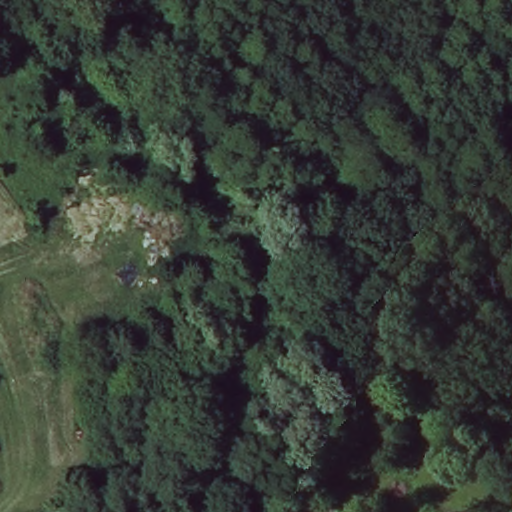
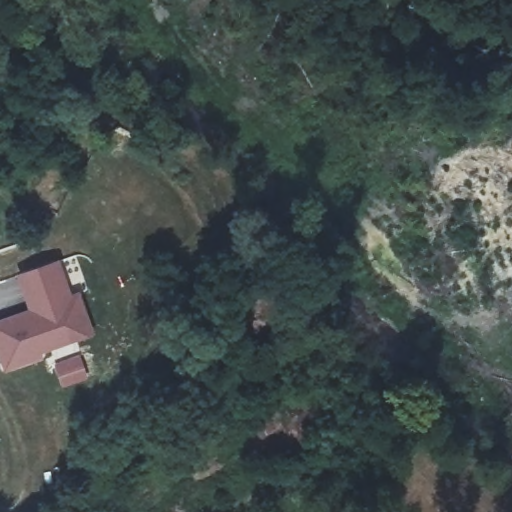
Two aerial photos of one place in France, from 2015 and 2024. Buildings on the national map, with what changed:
new [(16,273),(60,258),(73,292),(79,290),(95,332),(43,352),(44,356),(4,370),(0,356),(0,319),(28,308),(16,273)]

